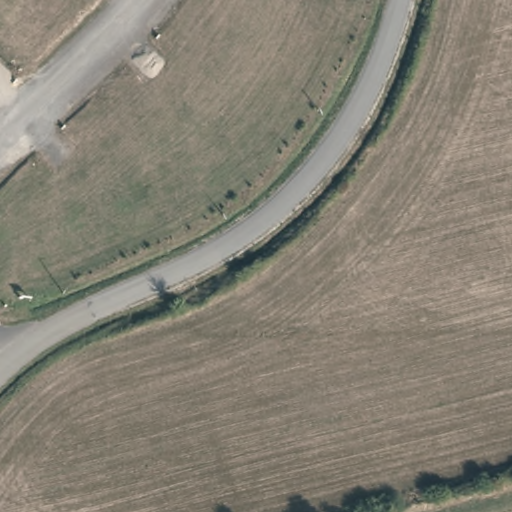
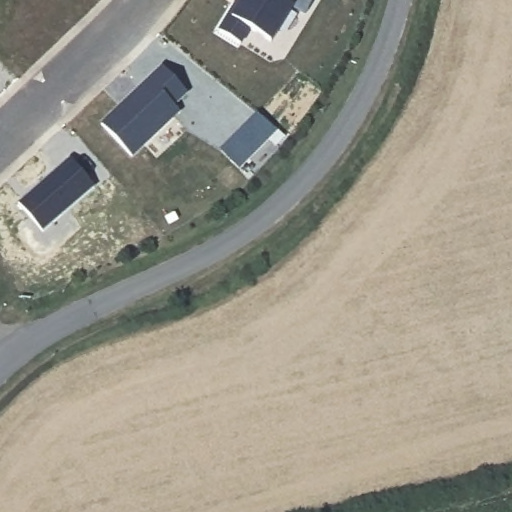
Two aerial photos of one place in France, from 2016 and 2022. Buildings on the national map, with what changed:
new [(305,19),(292,10),(271,47),(252,33),(242,47),(214,30),(230,0),(314,0),(305,19)]
new [(163,68),(187,94),(173,106),(179,113),(131,157),(101,125),(163,68)]
new [(44,232),(19,203),(70,160),(94,187),(44,232)]

